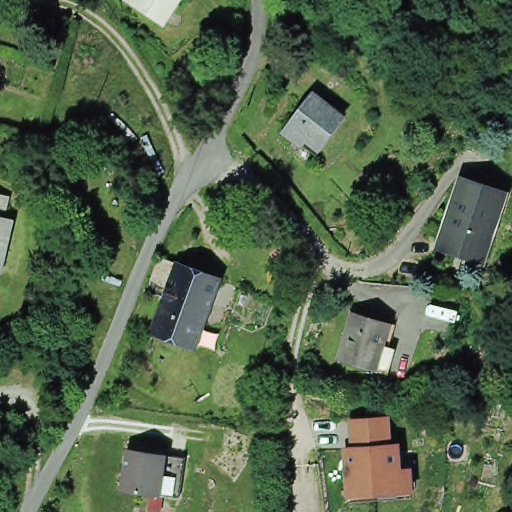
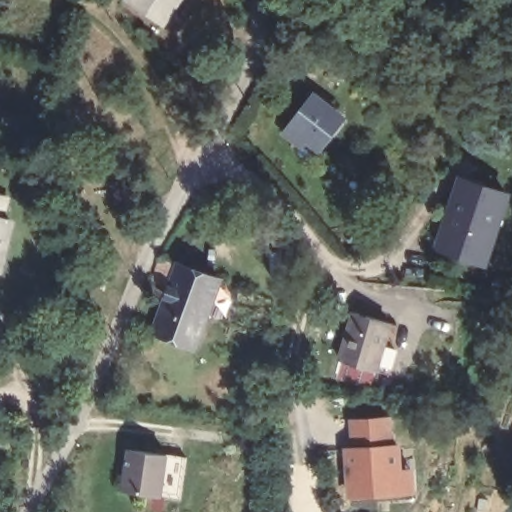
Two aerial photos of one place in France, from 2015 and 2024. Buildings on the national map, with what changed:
unchanged [(155,21),(127,1),(128,0),(186,0),(164,27),(155,21)]
unchanged [(280,129),(311,91),(336,108),(346,114),(314,155),(305,149),(280,129)]
unchanged [(499,233),(487,270),(451,257),(453,250),(438,245),(464,180),(509,199),(495,232),(499,233)]
unchanged [(10,215),(1,213),(0,219),(0,199),(13,202),(10,215)]
unchanged [(0,272),(0,222),(15,225),(4,260),(0,272)]
unchanged [(178,265),(210,277),(213,270),(226,276),(211,316),(186,307),(189,298),(169,290),(178,265)]
unchanged [(198,351),(154,335),(169,290),(189,298),(186,307),(211,316),(198,351)]
unchanged [(399,355),(393,370),(381,366),(378,374),(343,363),(359,314),(393,326),(400,329),(394,352),(394,353),(399,355)]
unchanged [(341,449),(349,448),(346,421),(381,417),(384,445),(392,444),(394,466),(404,465),(407,494),(346,500),(346,494),(341,449)]
unchanged [(162,452),(181,454),(176,495),(156,492),(119,487),(124,447),(162,452)]

